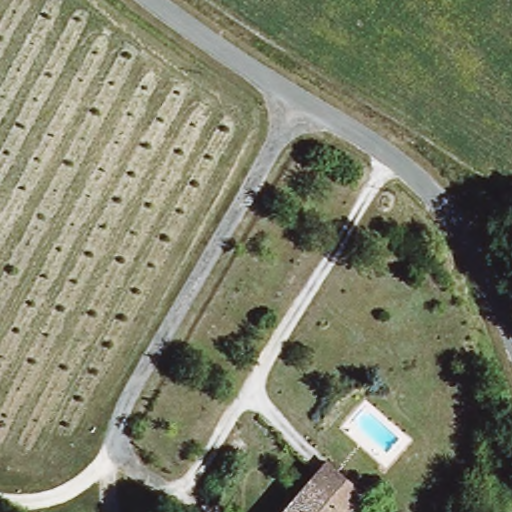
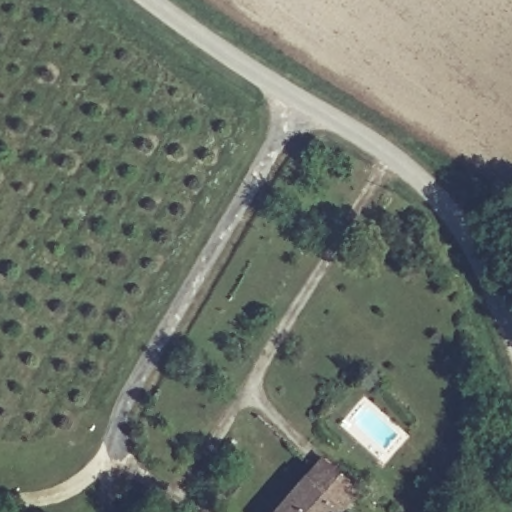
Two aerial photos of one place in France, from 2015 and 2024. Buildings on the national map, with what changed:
unchanged [(325,447),(362,482),(346,499),(308,466),(325,447)]
unchanged [(346,499),(333,512),(267,512),(265,510),(307,464),(308,466),(346,499)]

